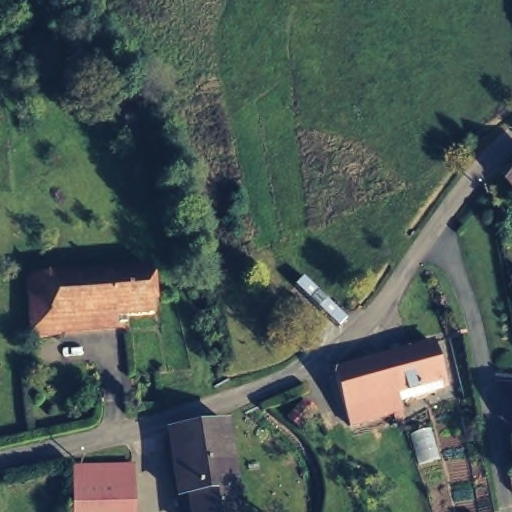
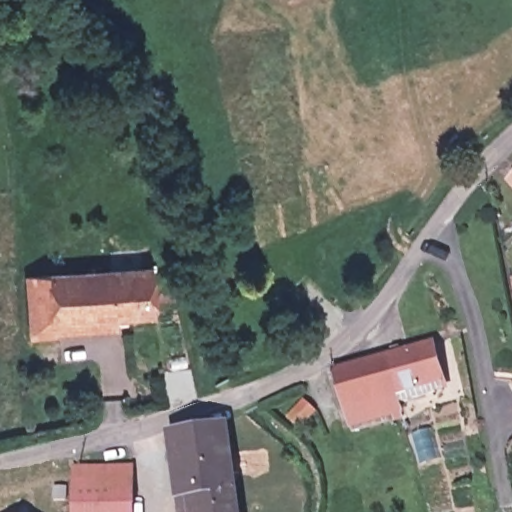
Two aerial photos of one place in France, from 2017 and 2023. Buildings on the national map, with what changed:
unchanged [(507,185),(512,180),(512,191),(507,185)]
unchanged [(28,275),(105,271),(145,269),(149,312),(50,318),(50,334),(29,335),(28,275)]
unchanged [(391,343),(389,337),(396,335),(400,340),(427,332),(439,370),(427,373),(429,382),(394,392),(398,408),(390,411),(387,403),(349,414),(334,368),(331,360),(349,355),(391,343)]
unchanged [(325,405),(307,426),(295,412),(312,393),(325,405)]
unchanged [(242,512),(198,512),(197,507),(185,507),(177,431),(176,426),(232,418),(242,512)]
unchanged [(134,460),(136,512),(76,512),(73,470),(72,465),(92,463),(134,460)]

